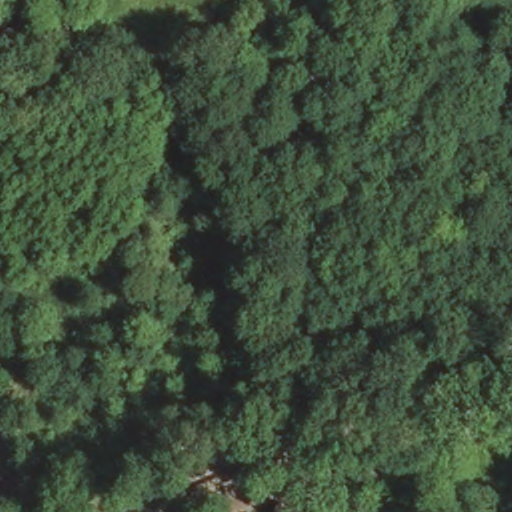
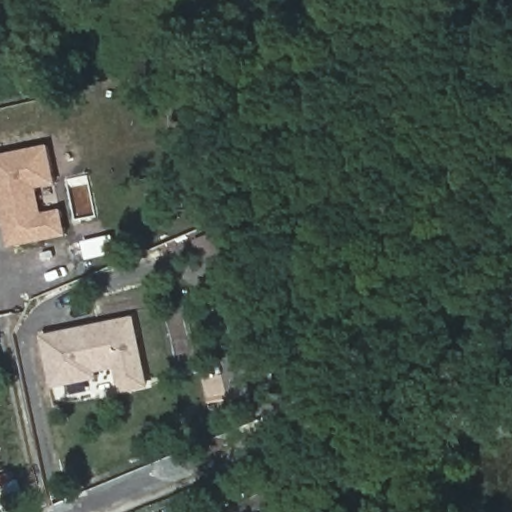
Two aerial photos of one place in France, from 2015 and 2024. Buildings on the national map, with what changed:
new [(39,188),(44,212),(63,208),(69,236),(14,247),(0,189),(0,156),(50,144),(58,183),(39,188)]
new [(84,241),(113,235),(117,253),(88,259),(84,241)]
new [(116,369),(94,374),(95,380),(54,388),(43,334),(136,315),(151,387),(123,393),(122,388),(116,369)]
new [(285,502),(304,510),(303,512),(282,512),(285,502)]

